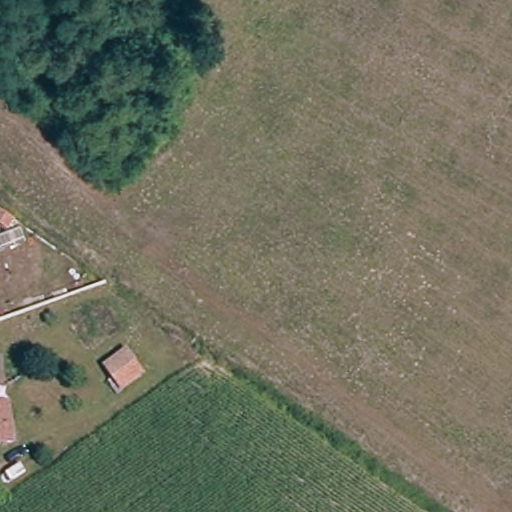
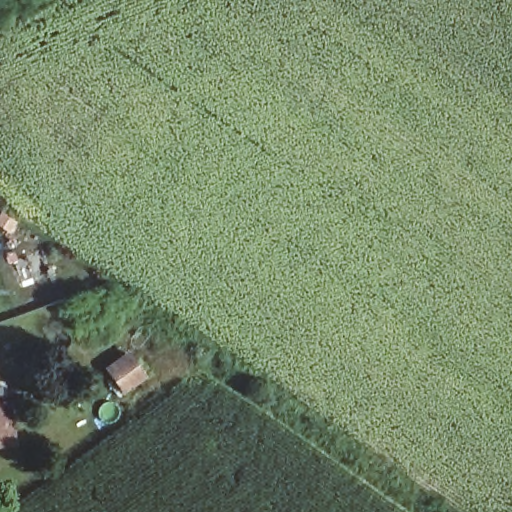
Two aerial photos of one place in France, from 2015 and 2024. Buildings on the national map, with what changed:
unchanged [(111,352),(126,372),(106,387),(91,367),(111,352)]
unchanged [(18,443),(0,444),(0,402),(15,402),(18,443)]

